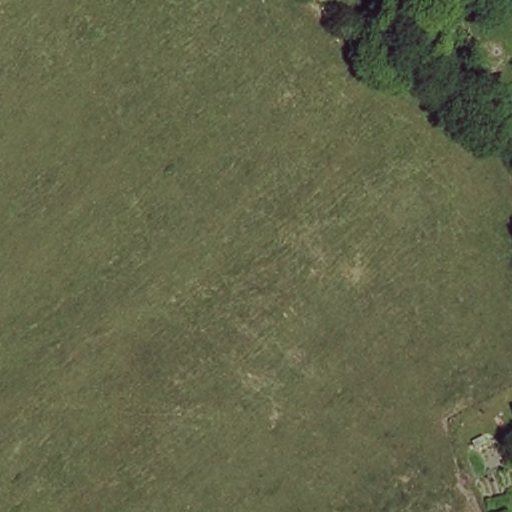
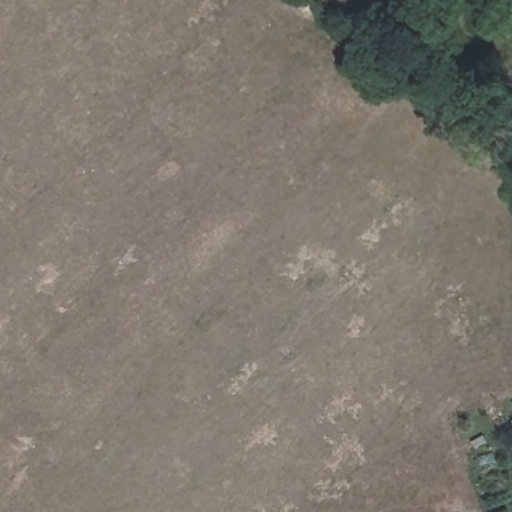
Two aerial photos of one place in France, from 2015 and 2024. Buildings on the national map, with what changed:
[]

